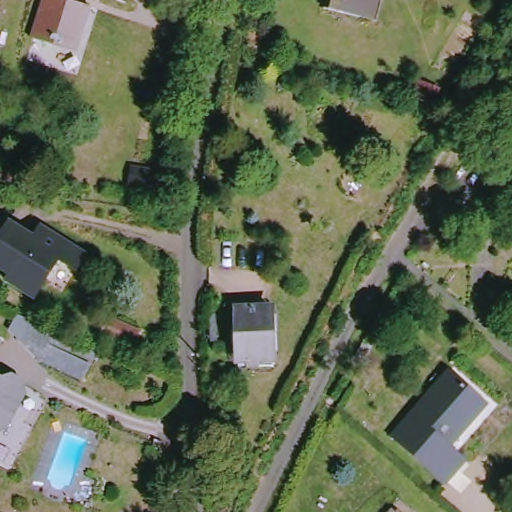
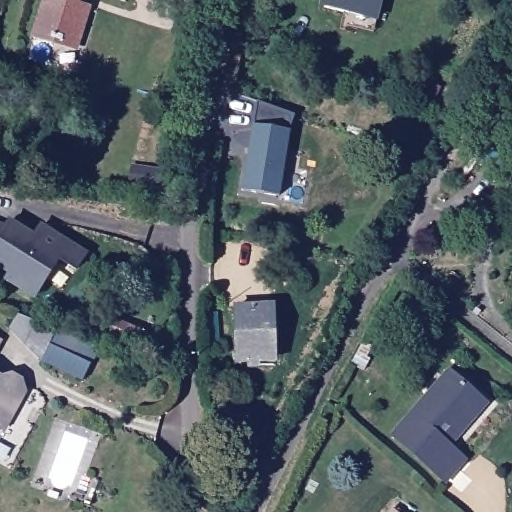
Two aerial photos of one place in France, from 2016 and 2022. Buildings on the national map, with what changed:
unchanged [(96,7),(81,53),(30,36),(41,0),(81,0),(81,1),(96,7)]
unchanged [(331,4),(331,0),(375,0),(372,15),(331,4)]
new [(244,190),(254,126),(259,103),(294,116),(290,131),(280,197),(244,190)]
unchanged [(169,173),(166,190),(138,186),(140,168),(169,173)]
unchanged [(7,171),(6,181),(0,180),(0,170),(7,171)]
unchanged [(36,236),(44,223),(92,256),(81,273),(62,262),(35,303),(2,281),(8,274),(0,269),(0,237),(12,218),(36,236)]
unchanged [(275,309),(277,361),(244,363),(242,309),(275,309)]
unchanged [(12,332),(19,314),(100,349),(91,366),(83,382),(41,362),(48,346),(12,332)]
unchanged [(145,336),(139,349),(107,334),(113,321),(145,336)]
unchanged [(7,343),(0,355),(0,339),(7,343)]
unchanged [(475,390),(467,400),(477,409),(443,448),(459,462),(445,477),(395,430),(451,368),(475,390)]
unchanged [(3,385),(6,381),(15,379),(24,384),(26,394),(12,419),(1,422),(0,423),(0,383),(3,385)]
unchanged [(395,509),(398,512),(392,512),(395,509)]

